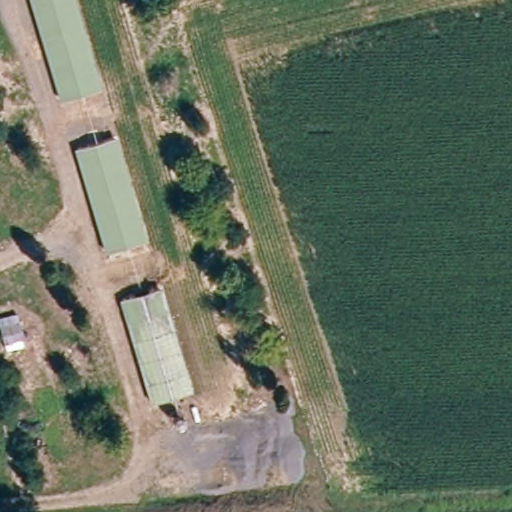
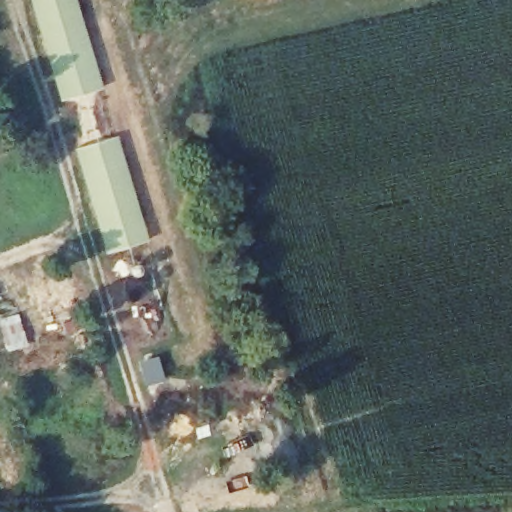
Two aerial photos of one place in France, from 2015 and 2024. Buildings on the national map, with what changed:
unchanged [(97,85),(60,98),(31,0),(72,0),(97,85)]
unchanged [(147,237),(110,248),(80,147),(117,136),(147,237)]
demolished [(190,389),(152,400),(121,299),(159,288),(190,389)]

